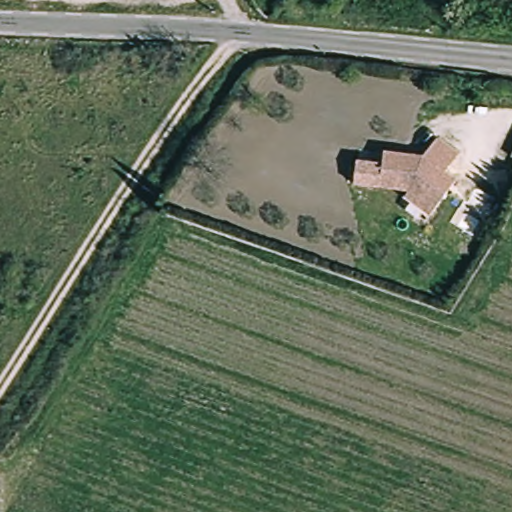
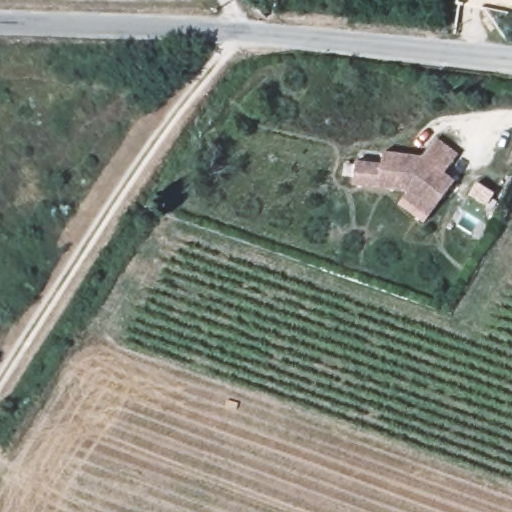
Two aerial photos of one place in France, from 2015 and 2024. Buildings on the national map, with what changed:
unchanged [(401,197),(405,192),(376,187),(379,166),(380,152),(420,159),(424,153),(437,135),(459,152),(443,172),(454,181),(431,212),(427,217),(401,197)]

